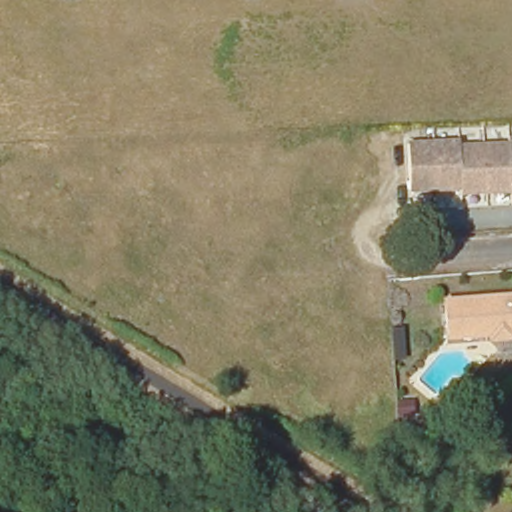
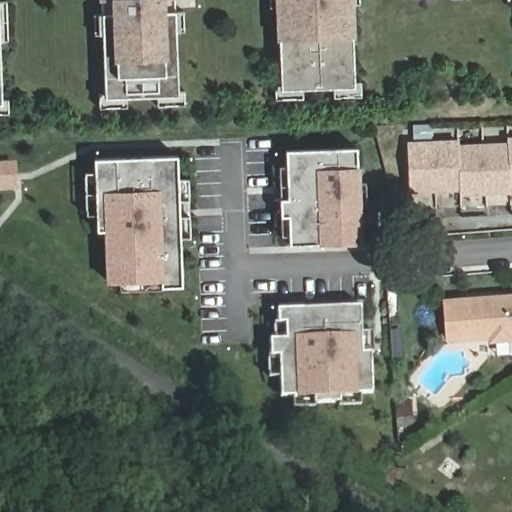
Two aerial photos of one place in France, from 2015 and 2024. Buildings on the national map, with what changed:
new [(0,105),(0,0),(5,105),(0,105)]
new [(106,98),(101,0),(175,0),(179,95),(106,98)]
new [(279,90),(275,0),(350,0),(353,86),(279,90)]
unchanged [(459,147),(508,145),(508,140),(512,140),(512,185),(511,186),(511,191),(460,193),(460,188),(410,191),(408,145),(459,142),(459,147)]
new [(363,245),(294,247),(294,217),(285,217),(285,196),(293,195),(292,149),(359,146),(363,245)]
new [(184,287),(164,287),(164,281),(109,283),(107,232),(99,232),(97,214),(87,214),(86,172),(95,170),(95,159),(179,156),(184,287)]
new [(16,162),(17,187),(0,188),(0,163),(16,162)]
unchanged [(512,343),(500,343),(495,339),(452,342),(449,304),(512,300),(512,343)]
new [(365,350),(374,349),(374,394),(342,395),(343,399),(312,401),(312,396),(282,397),(280,358),(275,358),(275,337),(287,336),(286,316),(279,317),(281,309),(365,305),(365,350)]
unchanged [(410,402),(411,417),(399,418),(398,403),(410,402)]

